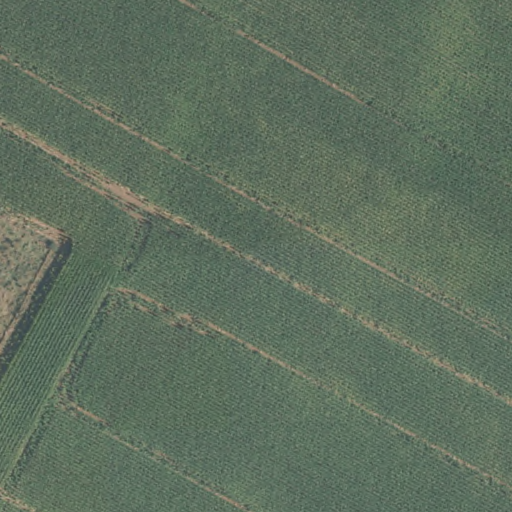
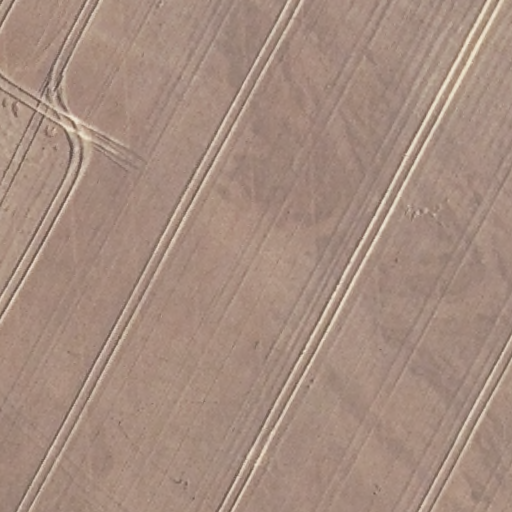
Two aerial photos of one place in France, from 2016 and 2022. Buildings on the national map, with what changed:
[]

